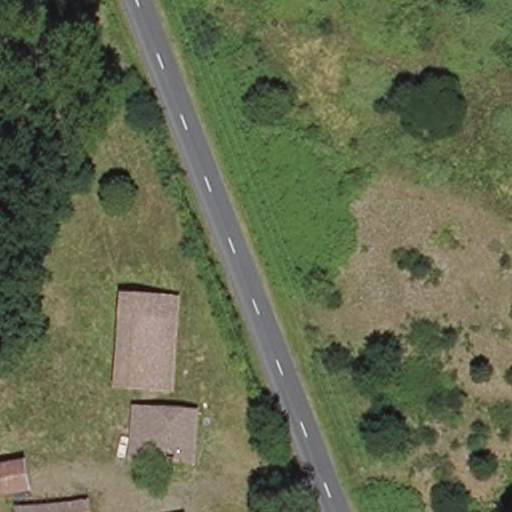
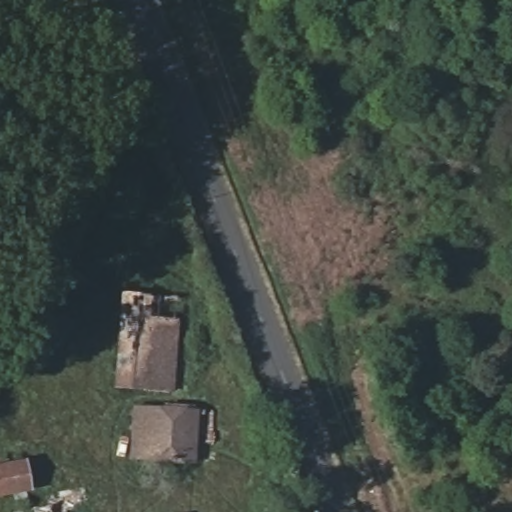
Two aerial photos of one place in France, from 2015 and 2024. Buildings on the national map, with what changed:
unchanged [(118,373),(123,310),(177,311),(174,376),(118,373)]
unchanged [(132,462),(134,407),(194,411),(192,466),(132,462)]
unchanged [(23,459),(27,490),(0,495),(0,461),(23,459)]
unchanged [(26,508),(86,498),(89,512),(27,512),(26,508)]

